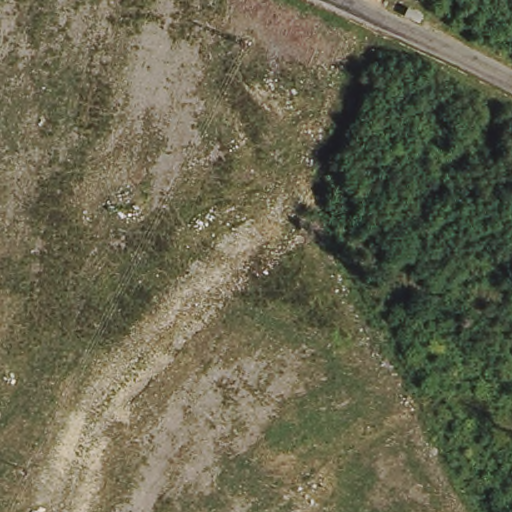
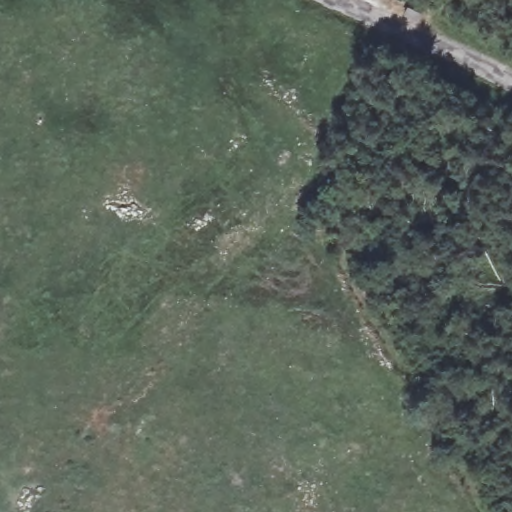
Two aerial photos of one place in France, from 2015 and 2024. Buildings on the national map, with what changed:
unchanged [(385,0),(387,0),(405,8),(399,21),(379,13),(385,0)]

